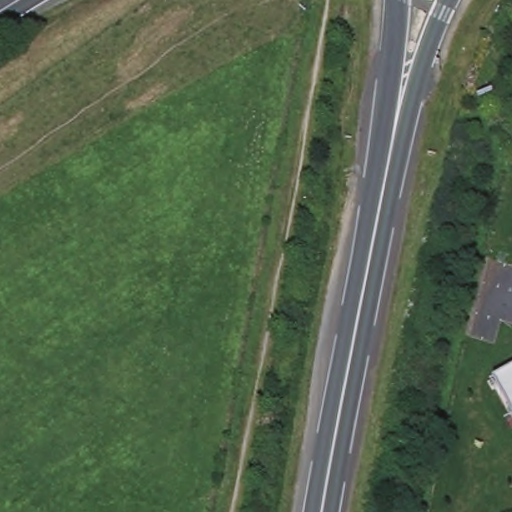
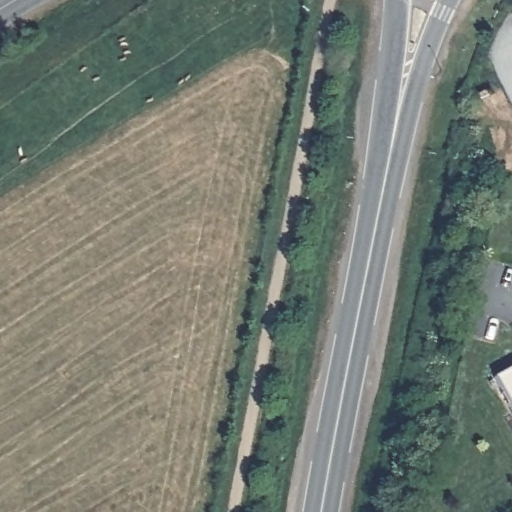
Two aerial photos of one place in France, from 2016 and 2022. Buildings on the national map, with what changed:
unchanged [(497,375),(512,367),(512,407),(497,375)]

